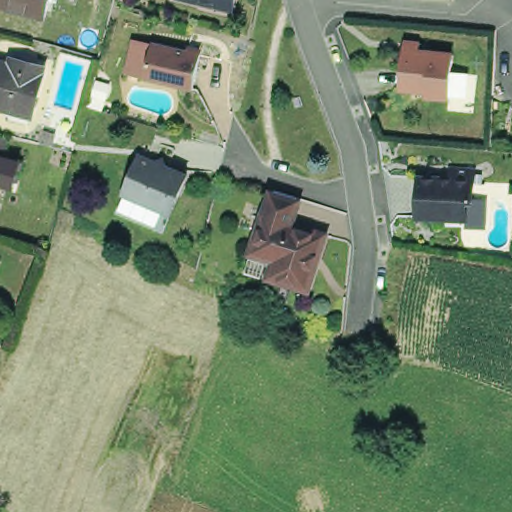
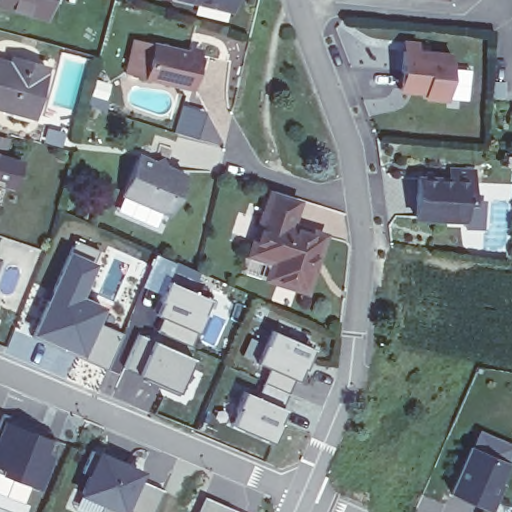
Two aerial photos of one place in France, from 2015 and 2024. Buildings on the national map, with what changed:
unchanged [(0,6),(0,0),(48,0),(42,17),(0,6)]
unchanged [(181,0),(230,0),(228,10),(181,0)]
unchanged [(193,87),(145,75),(124,70),(133,35),(155,40),(202,52),(193,87)]
unchanged [(403,75),(405,55),(407,45),(420,45),(419,56),(452,60),(449,101),(428,100),(429,96),(407,92),(402,91),(403,75)]
unchanged [(10,112),(0,109),(0,64),(9,66),(15,61),(45,70),(33,111),(31,119),(10,112)]
unchanged [(18,158),(13,175),(0,171),(0,152),(18,158)]
unchanged [(165,169),(184,176),(167,214),(120,195),(135,156),(150,163),(160,159),(165,169)]
unchanged [(414,220),(417,180),(447,180),(448,172),(469,174),(468,202),(463,202),(462,221),(414,220)]
unchanged [(300,195),(293,222),(292,226),(262,221),(272,187),(300,195)]
unchanged [(292,226),(293,222),(325,232),(310,286),(282,277),(280,268),(272,266),(268,257),(268,248),(252,243),(256,220),(262,221),(292,226)]
new [(57,270),(73,237),(97,250),(80,293),(103,305),(96,321),(80,355),(30,332),(57,270)]
new [(203,312),(209,315),(201,334),(197,332),(190,346),(157,331),(163,317),(153,313),(167,280),(208,298),(203,312)]
new [(96,321),(120,331),(103,367),(80,355),(96,321)]
new [(257,362),(272,330),(313,347),(293,394),(265,382),(272,368),(257,362)]
new [(135,332),(193,357),(175,392),(122,365),(135,332)]
new [(227,423),(242,391),(258,397),(265,382),(293,394),(272,441),(227,423)]
new [(30,425),(27,432),(50,441),(32,487),(0,475),(0,414),(30,425)]
new [(467,447),(503,463),(495,483),(498,484),(492,500),(488,498),(483,509),(447,492),(467,447)]
new [(134,471),(131,478),(158,490),(149,512),(125,512),(117,508),(116,512),(93,512),(98,502),(75,492),(83,475),(75,471),(85,450),(134,471)]
new [(233,512),(198,512),(205,496),(234,508),(233,512)]

